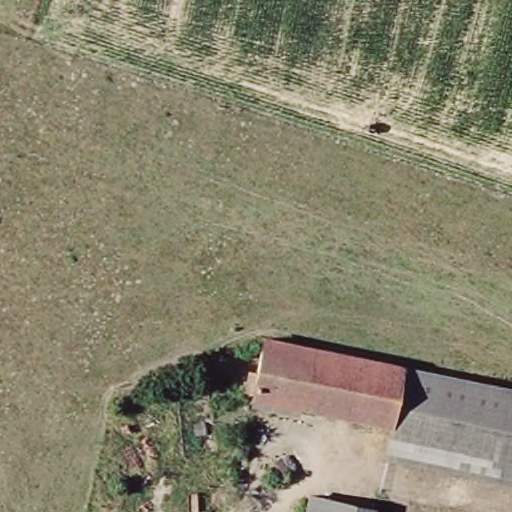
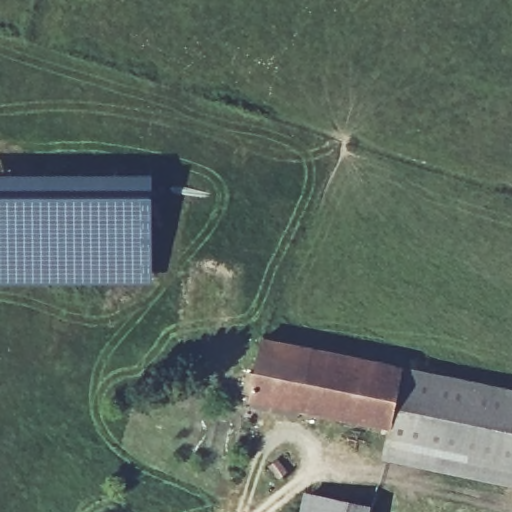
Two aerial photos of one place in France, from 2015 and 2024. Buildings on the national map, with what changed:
new [(153,285),(0,285),(0,170),(154,170),(153,285)]
unchanged [(382,422),(246,395),(258,336),(393,363),(386,401),(382,422)]
unchanged [(512,388),(512,427),(386,401),(393,363),(512,388)]
unchanged [(383,458),(391,424),(382,422),(386,401),(512,427),(512,485),(383,458)]
unchanged [(266,461),(276,455),(287,468),(276,475),(266,461)]
unchanged [(307,492),(372,505),(370,512),(302,512),(307,492)]

